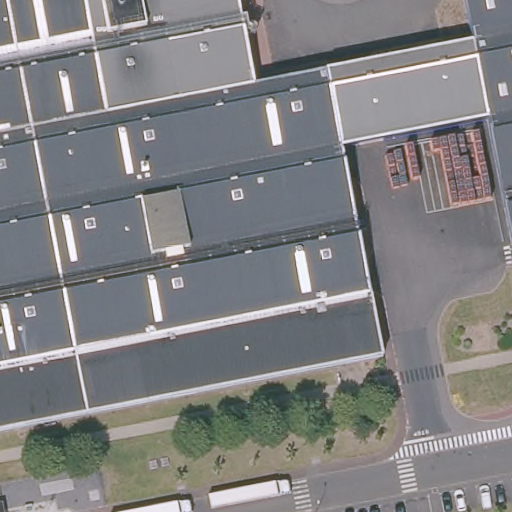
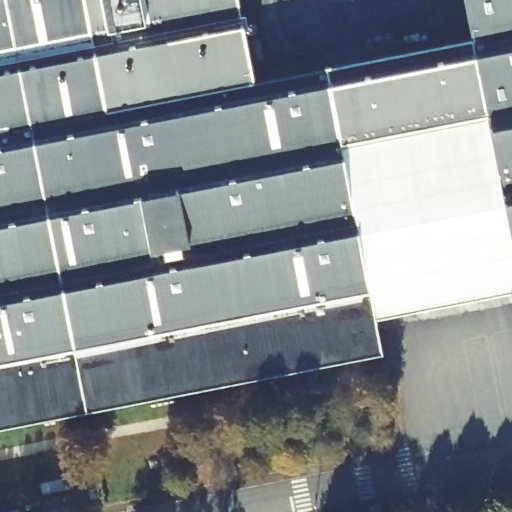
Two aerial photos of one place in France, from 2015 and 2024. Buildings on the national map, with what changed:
unchanged [(327,71),(345,158),(348,175),(383,356),(0,430),(0,0),(239,0),(255,85),(327,71)]
unchanged [(466,0),(512,0),(512,236),(511,234),(466,0)]
new [(342,147),(327,71),(475,43),(488,117),(342,147)]
new [(488,117),(499,170),(511,234),(512,236),(512,293),(376,319),(342,147),(488,117)]

